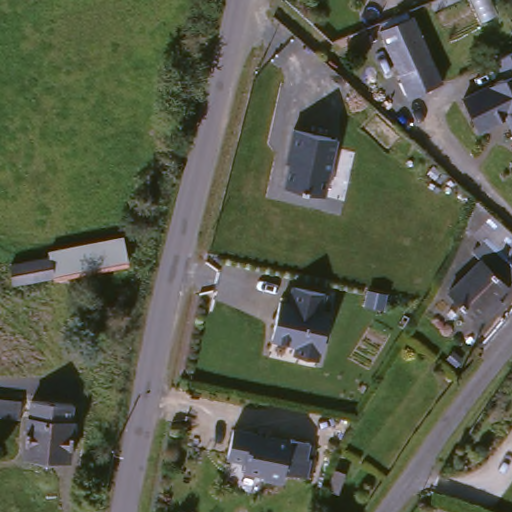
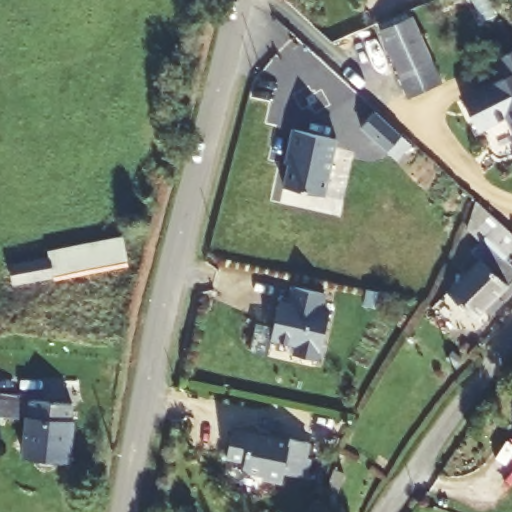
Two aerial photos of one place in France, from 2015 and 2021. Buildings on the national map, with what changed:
unchanged [(410,102),(401,80),(382,36),(415,24),(433,68),(442,89),(410,102)]
unchanged [(510,118),(475,132),(460,95),(503,75),(495,57),(512,50),(512,123),(510,118)]
unchanged [(397,164),(388,155),(363,129),(378,114),(403,140),(412,149),(397,164)]
unchanged [(325,196),(302,192),(303,184),(282,181),(292,129),(338,136),(325,196)]
unchanged [(473,273),(468,267),(475,258),(460,242),(471,217),(479,225),(493,236),(510,251),(512,253),(512,256),(499,270),(512,283),(473,329),(446,305),(473,273)]
unchanged [(10,265),(47,260),(46,252),(124,241),(130,270),(15,287),(10,265)]
unchanged [(318,357),(291,352),(293,344),(272,340),(280,299),(290,301),(293,287),(325,293),(320,312),(331,314),(318,357)]
unchanged [(71,458),(22,452),(27,414),(0,409),(0,392),(77,400),(71,458)]
unchanged [(233,445),(235,433),(294,443),(293,445),(312,448),(310,462),(315,463),(310,481),(288,477),(285,486),(265,482),(265,477),(246,474),(245,465),(230,461),(233,445)]

